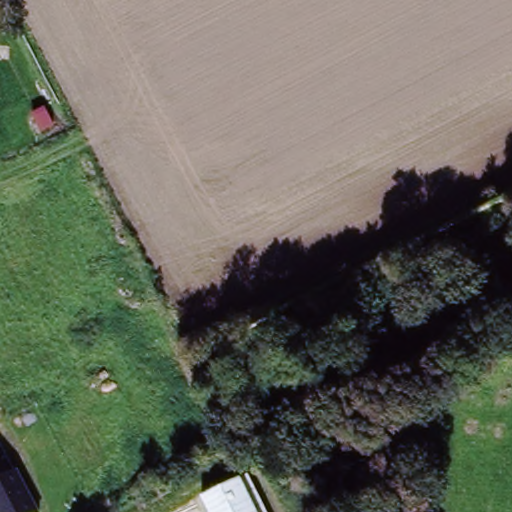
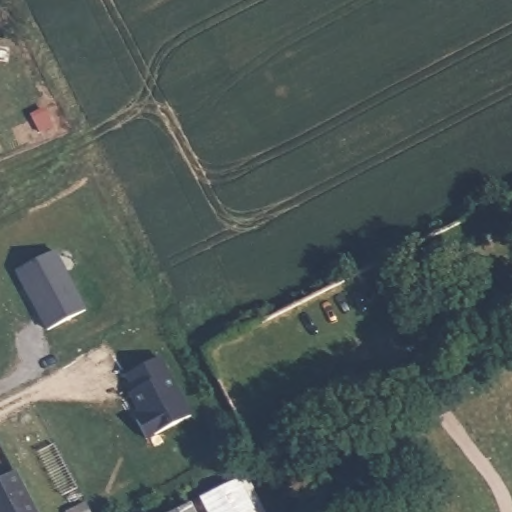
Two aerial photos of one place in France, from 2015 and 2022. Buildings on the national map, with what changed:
new [(54,250),(87,310),(45,331),(15,271),(54,250)]
new [(147,440),(136,420),(143,416),(131,392),(135,391),(127,376),(160,359),(191,416),(147,440)]
unchanged [(0,512),(0,477),(16,469),(38,512),(0,512)]
unchanged [(258,512),(198,512),(193,505),(238,477),(258,512)]
new [(194,512),(176,512),(190,505),(194,512)]

